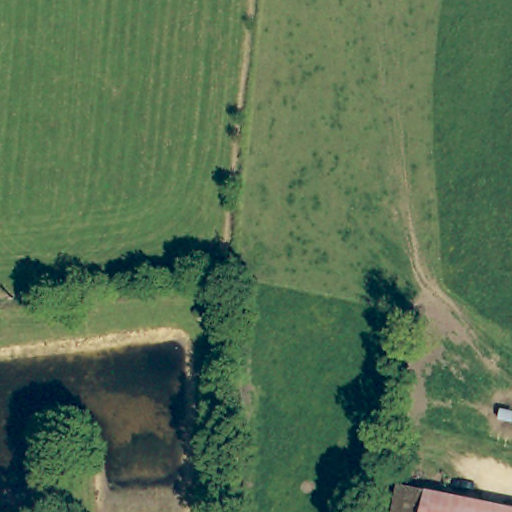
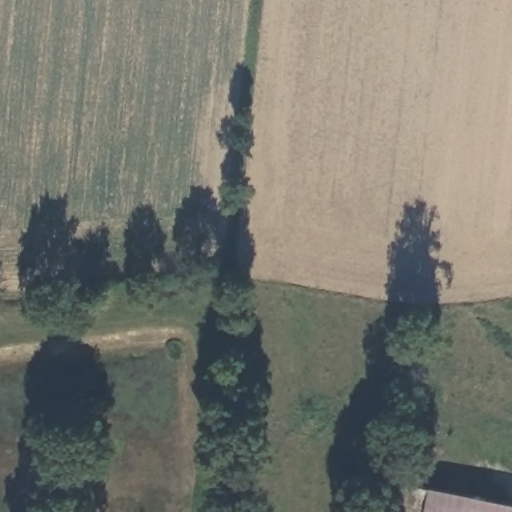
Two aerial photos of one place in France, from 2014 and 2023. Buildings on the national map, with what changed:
unchanged [(424,512),(427,494),(512,507),(512,512),(424,512)]

